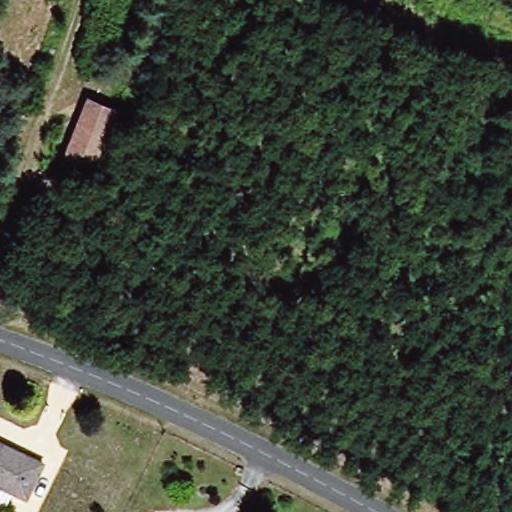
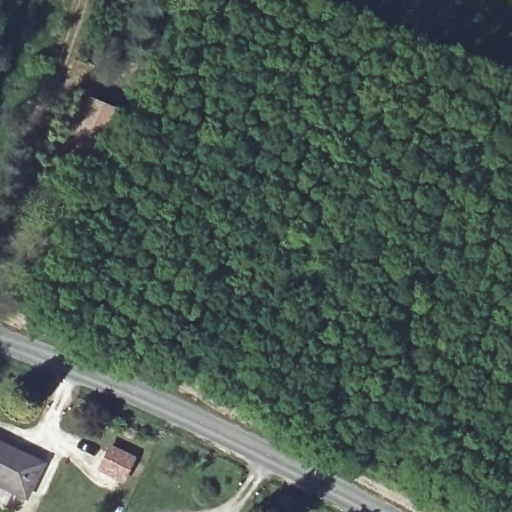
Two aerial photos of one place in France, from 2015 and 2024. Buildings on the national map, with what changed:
unchanged [(100,168),(71,157),(93,101),(121,112),(100,168)]
unchanged [(48,460),(29,500),(0,485),(0,436),(48,460)]
new [(110,446),(133,457),(123,479),(100,469),(110,446)]

